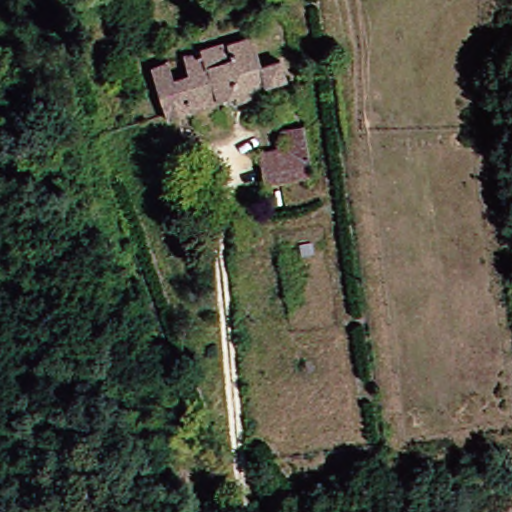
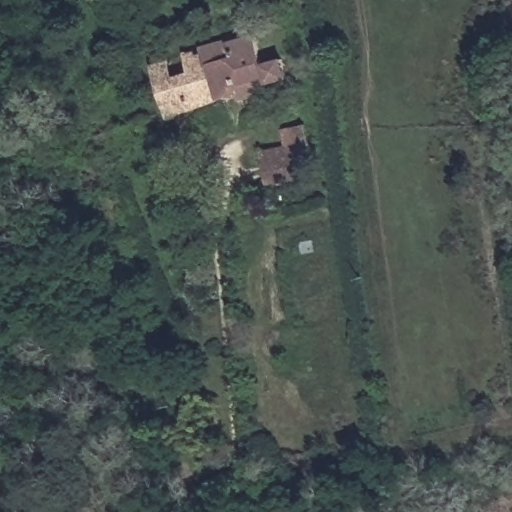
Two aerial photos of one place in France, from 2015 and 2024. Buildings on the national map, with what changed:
unchanged [(160,66),(239,42),(265,35),(275,64),(292,60),(295,81),(177,116),(160,66)]
unchanged [(269,151),(289,149),(287,132),(315,127),(322,178),(276,185),(269,151)]

